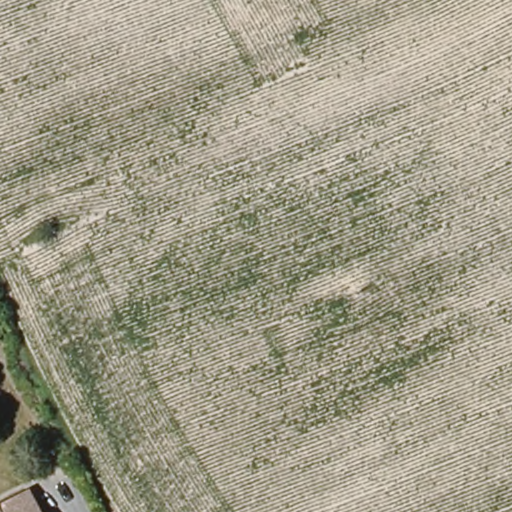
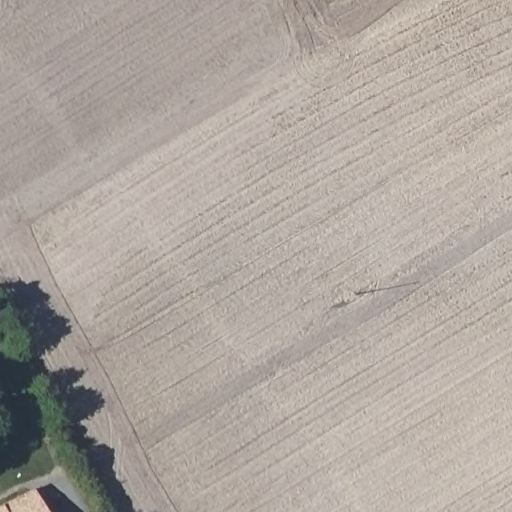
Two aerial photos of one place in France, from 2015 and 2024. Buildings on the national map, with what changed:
unchanged [(0,512),(0,510),(23,496),(32,512),(0,512)]

